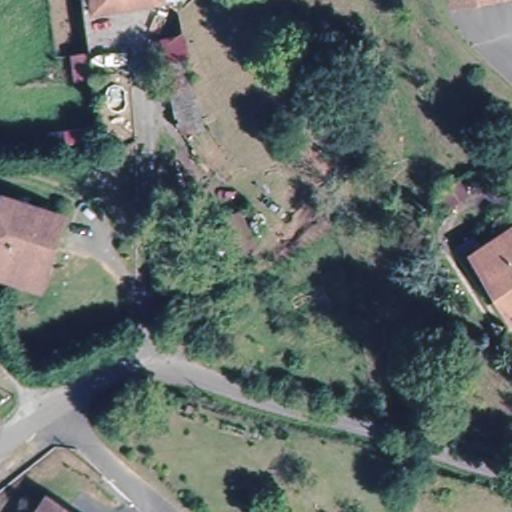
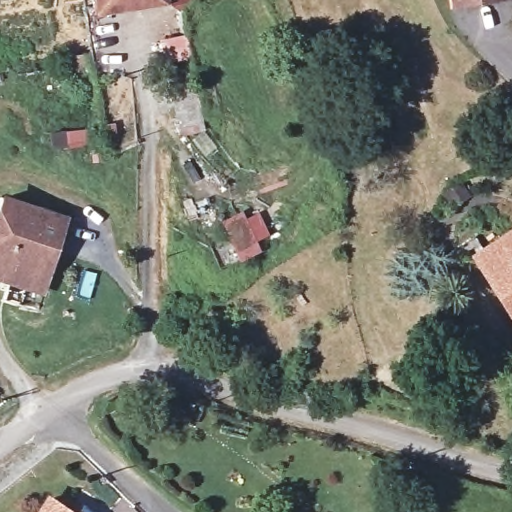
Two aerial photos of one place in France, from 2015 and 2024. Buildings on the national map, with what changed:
unchanged [(108,0),(131,0),(108,3),(108,0)]
unchanged [(454,0),(473,0),(454,3),(454,0)]
unchanged [(235,25),(249,145),(214,149),(190,29),(235,25)]
unchanged [(185,54),(165,56),(164,41),(182,39),(185,54)]
unchanged [(20,279),(0,274),(0,217),(4,203),(61,215),(49,269),(45,285),(20,279)]
unchanged [(512,224),(512,309),(473,248),(512,224)]
unchanged [(52,499),(72,512),(43,512),(52,499)]

